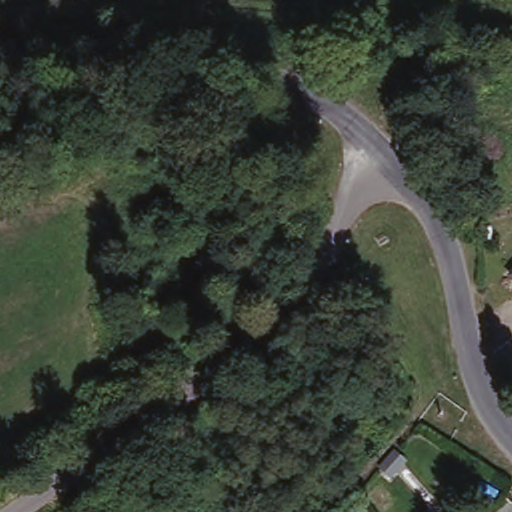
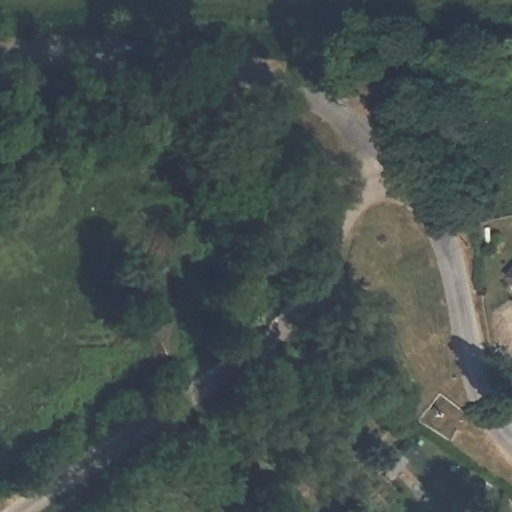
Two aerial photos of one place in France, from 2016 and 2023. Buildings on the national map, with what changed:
unchanged [(512,277),(510,275),(512,273),(512,277)]
unchanged [(404,464),(391,480),(378,469),(393,455),(404,464)]

